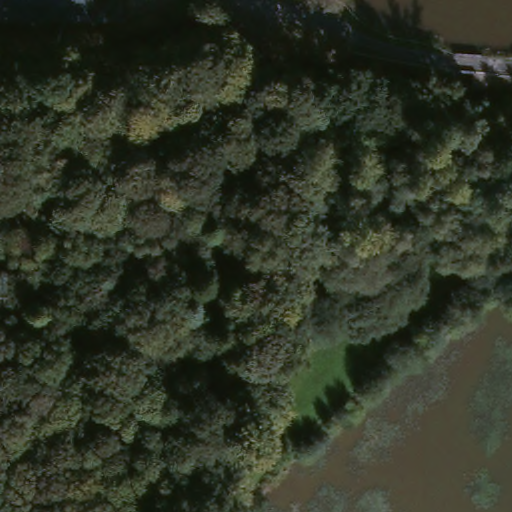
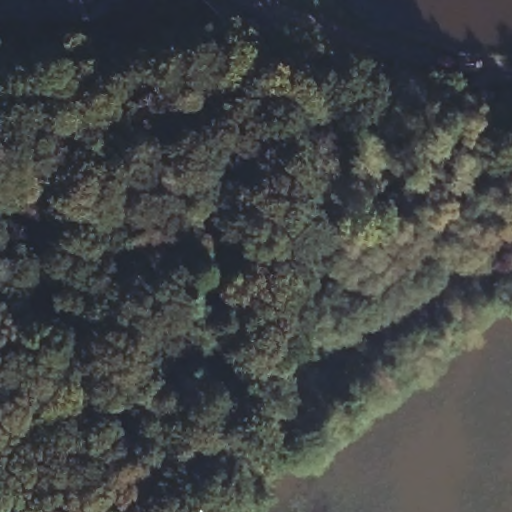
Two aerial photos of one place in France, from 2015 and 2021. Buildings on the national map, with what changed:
unchanged [(1,24),(0,0),(124,0),(121,29),(1,24)]

